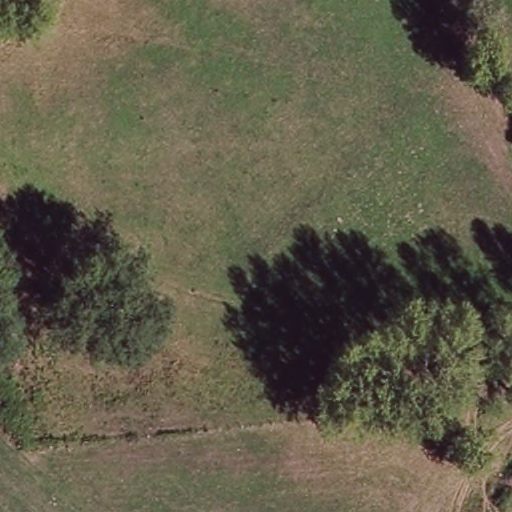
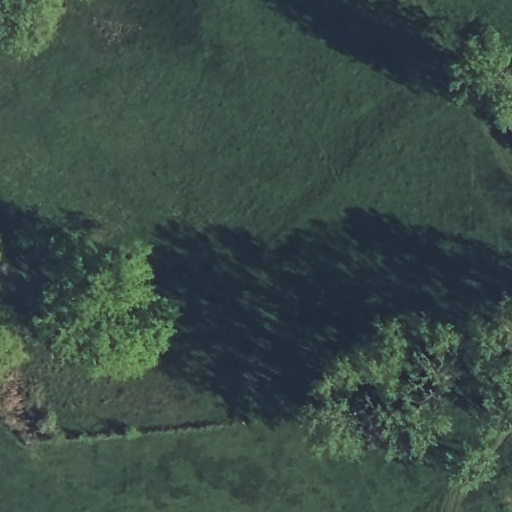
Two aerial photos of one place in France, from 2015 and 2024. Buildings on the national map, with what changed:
[]

